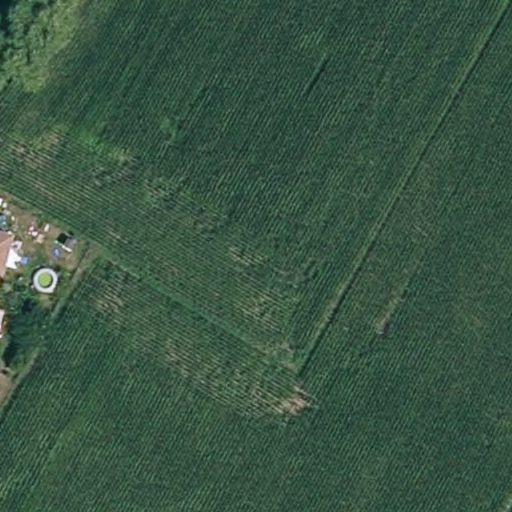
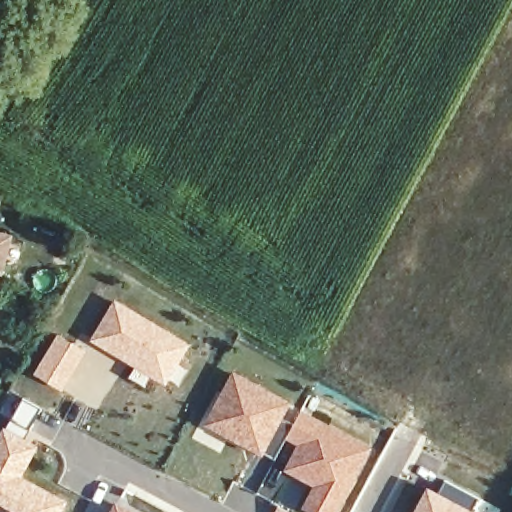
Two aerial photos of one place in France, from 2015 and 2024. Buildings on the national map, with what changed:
unchanged [(10,227),(2,260),(0,268),(0,224),(10,227)]
new [(113,299),(190,344),(165,385),(150,377),(145,387),(127,376),(133,367),(89,340),(113,299)]
new [(58,332),(86,350),(61,390),(33,373),(58,332)]
new [(232,368),(291,401),(261,456),(198,425),(232,368)]
new [(5,425),(22,398),(40,410),(25,436),(39,443),(23,475),(68,498),(61,512),(11,512),(0,505),(0,432),(5,425)]
new [(295,445),(284,439),(302,407),(372,446),(338,512),(308,512),(299,507),(310,486),(282,470),(295,445)]
new [(427,486),(437,491),(444,479),(479,498),(473,509),(479,512),(413,512),(427,486)]
new [(116,500),(140,512),(109,512),(116,500)]

